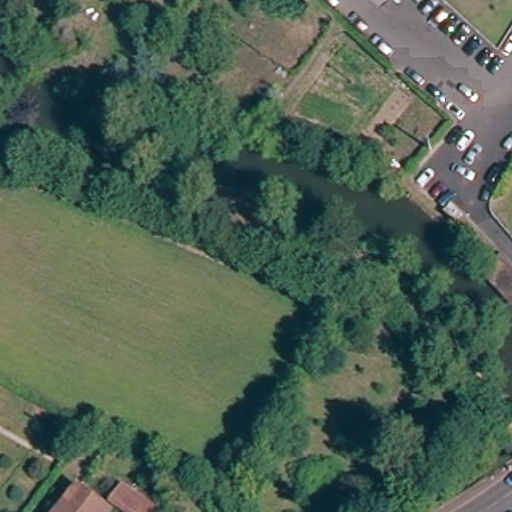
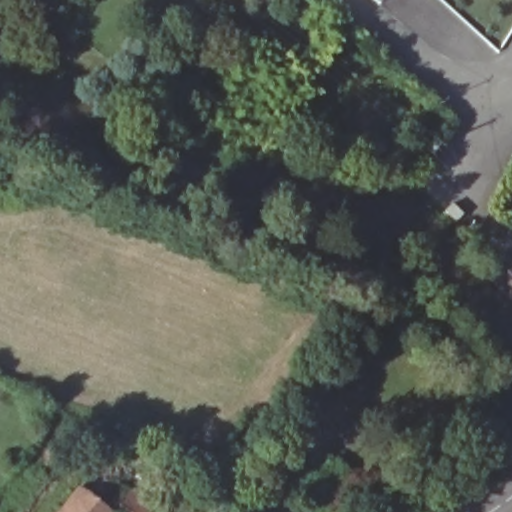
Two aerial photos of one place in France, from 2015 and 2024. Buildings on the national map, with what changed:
unchanged [(370,0),(383,0),(376,5),(370,0)]
unchanged [(452,226),(440,216),(449,206),(460,216),(452,226)]
unchanged [(501,258),(512,269),(512,301),(484,274),(487,271),(501,258)]
unchanged [(131,512),(95,486),(106,472),(160,512),(131,512)]
unchanged [(107,512),(53,512),(76,484),(108,510),(107,512)]
unchanged [(175,512),(170,512),(145,493),(152,484),(180,505),(175,512)]

